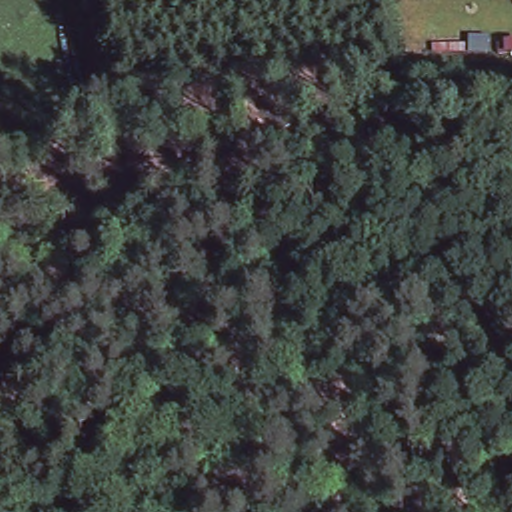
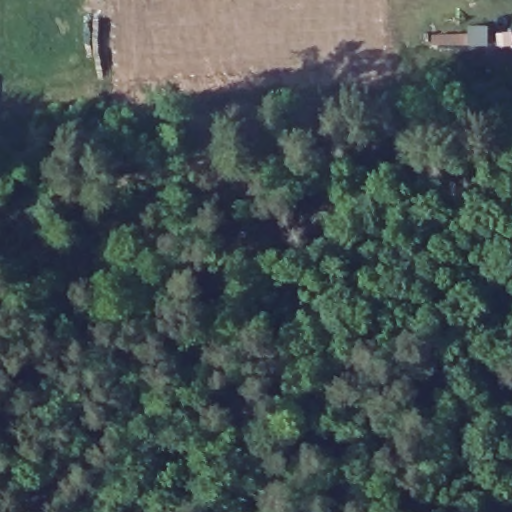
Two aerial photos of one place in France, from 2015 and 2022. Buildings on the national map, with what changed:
unchanged [(467,24),(486,25),(486,44),(467,45),(467,24)]
unchanged [(512,33),(512,44),(497,44),(497,33),(512,33)]

